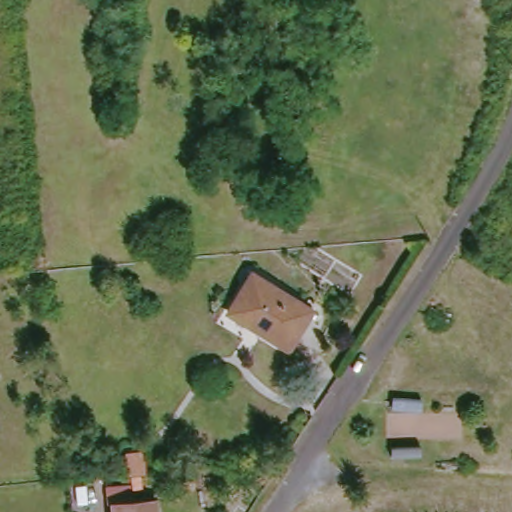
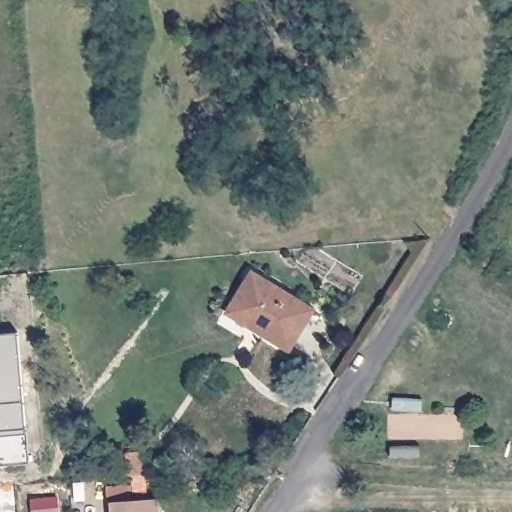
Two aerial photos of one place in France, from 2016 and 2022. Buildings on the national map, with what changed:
unchanged [(286,350),(260,334),(261,330),(229,310),(249,275),(308,312),(286,350)]
new [(28,461),(0,463),(0,331),(17,330),(28,461)]
unchanged [(155,450),(156,471),(136,473),(135,452),(155,450)]
unchanged [(107,499),(151,497),(152,512),(108,512),(107,499)]

